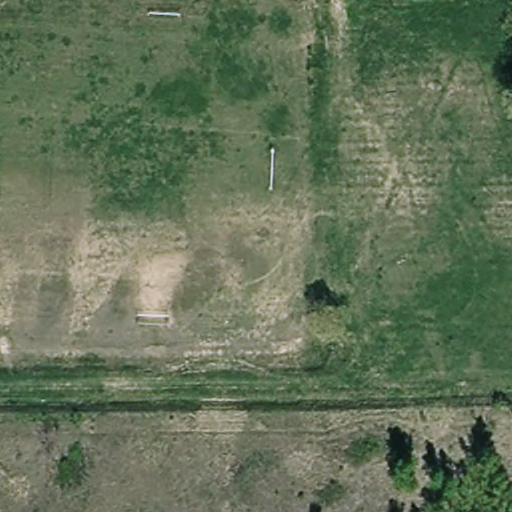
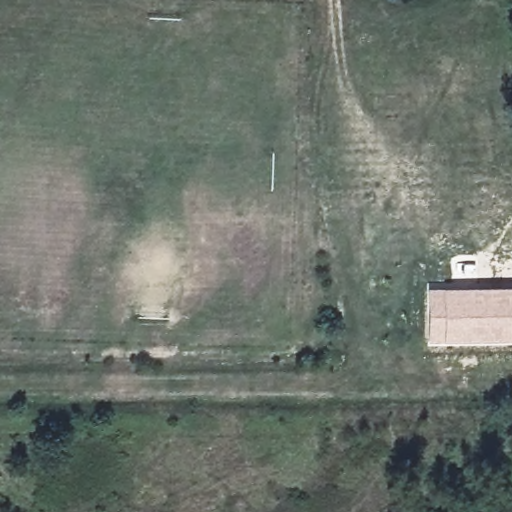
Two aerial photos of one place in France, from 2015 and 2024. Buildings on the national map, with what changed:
new [(442,287),(512,286),(512,340),(443,341),(427,342),(427,288),(442,287)]

